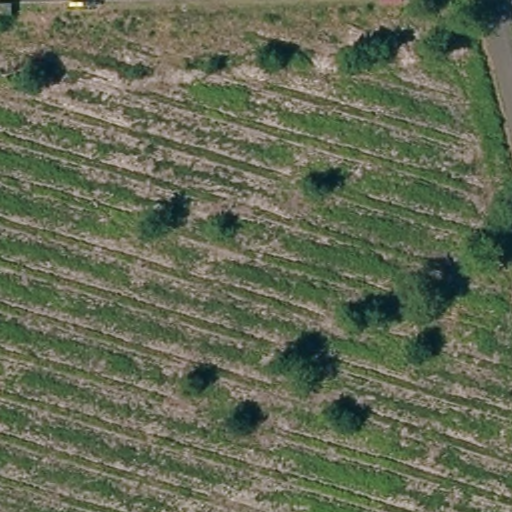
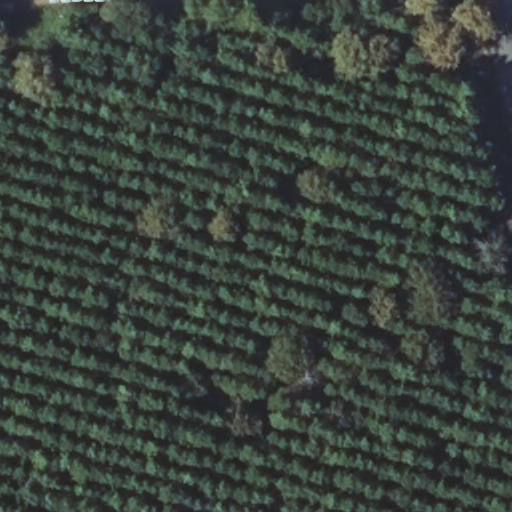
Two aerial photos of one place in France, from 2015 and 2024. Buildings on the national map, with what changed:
unchanged [(24,13),(5,13),(5,2),(24,2),(24,13)]

